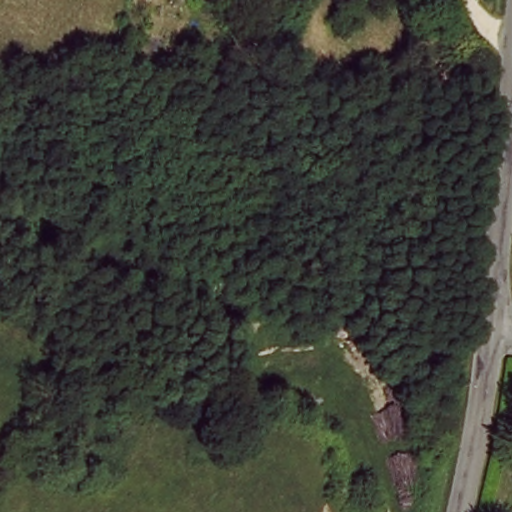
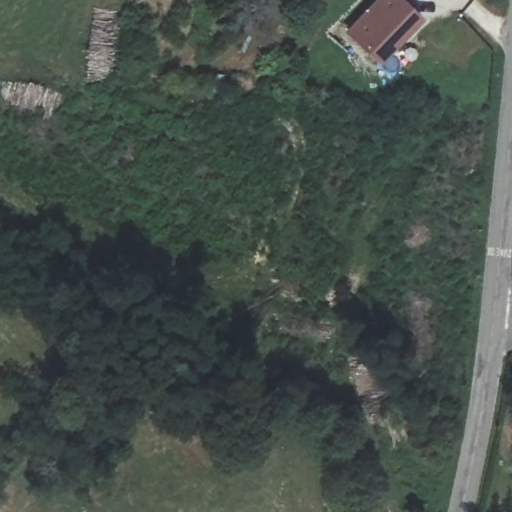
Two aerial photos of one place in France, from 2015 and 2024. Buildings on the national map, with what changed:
new [(379,0),(402,0),(423,21),(381,64),(347,32),(379,0)]

